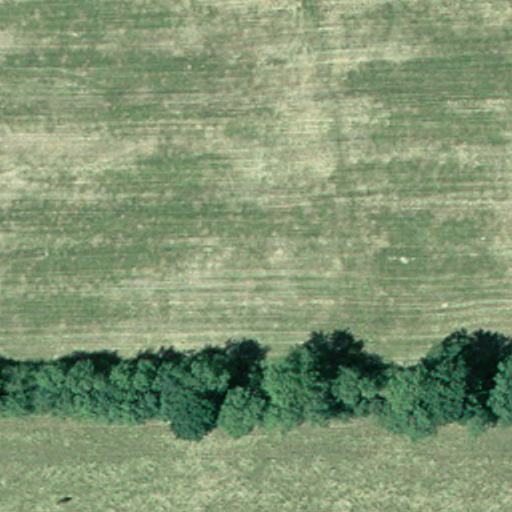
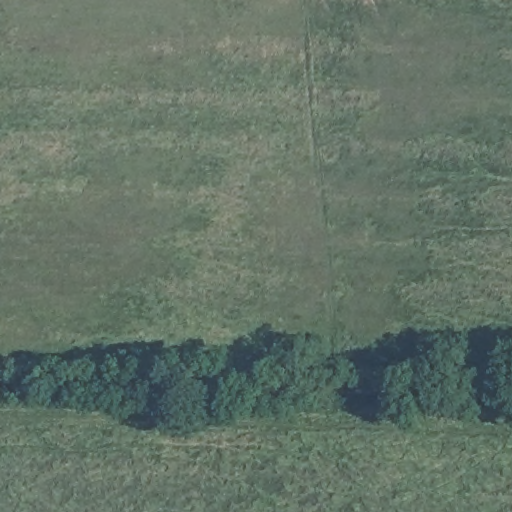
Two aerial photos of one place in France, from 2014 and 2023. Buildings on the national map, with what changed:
[]

